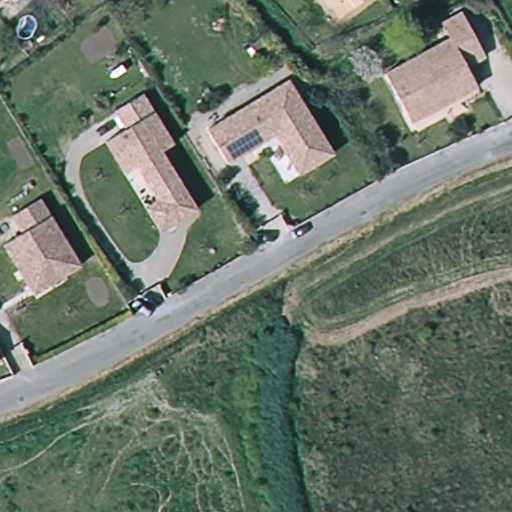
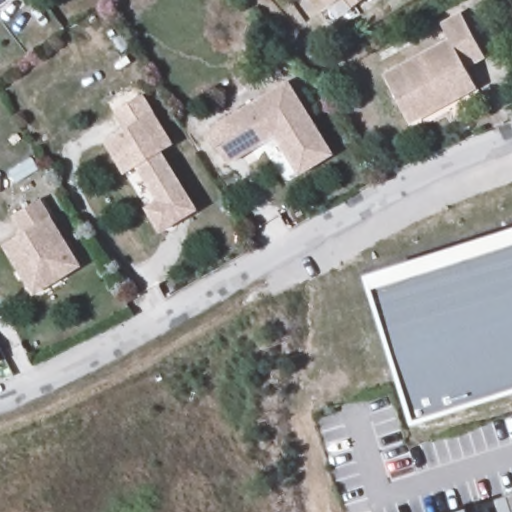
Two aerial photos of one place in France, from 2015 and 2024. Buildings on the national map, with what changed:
unchanged [(332,5),(330,6),(326,0),(365,0),(342,16),(332,5)]
unchanged [(413,122),(408,113),(388,75),(452,40),(443,23),(463,12),(487,56),(469,66),(475,77),(480,86),(413,122)]
unchanged [(302,169),(296,160),(277,129),(228,160),(206,126),(288,75),(330,140),(335,149),(302,169)]
unchanged [(147,205),(158,198),(138,166),(126,173),(106,140),(125,129),(114,111),(141,94),(172,144),(162,150),(198,207),(180,217),(161,229),(147,205)]
unchanged [(28,282),(5,243),(25,231),(13,213),(41,195),(82,262),(65,272),(34,291),(28,282)]
new [(372,288),(367,273),(512,229),(512,390),(413,421),(372,288)]
new [(498,500),(512,495),(512,512),(502,512),(498,500)]
new [(467,509),(468,512),(459,512),(467,509)]

